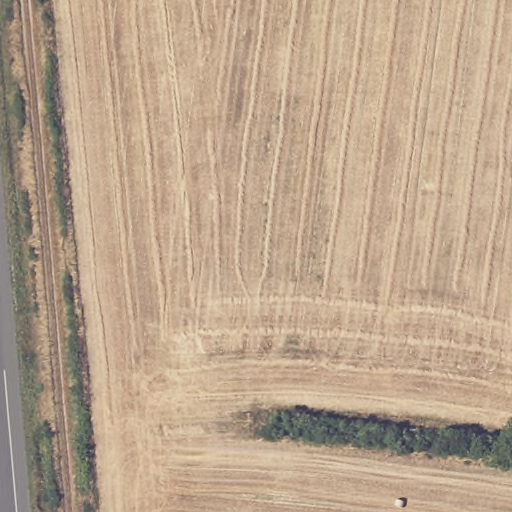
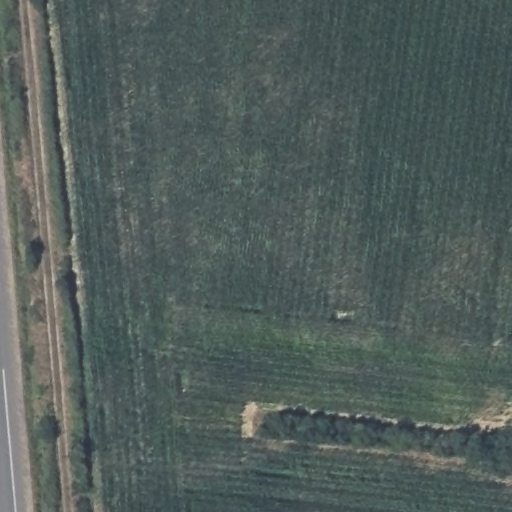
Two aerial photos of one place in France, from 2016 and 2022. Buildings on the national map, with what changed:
[]

